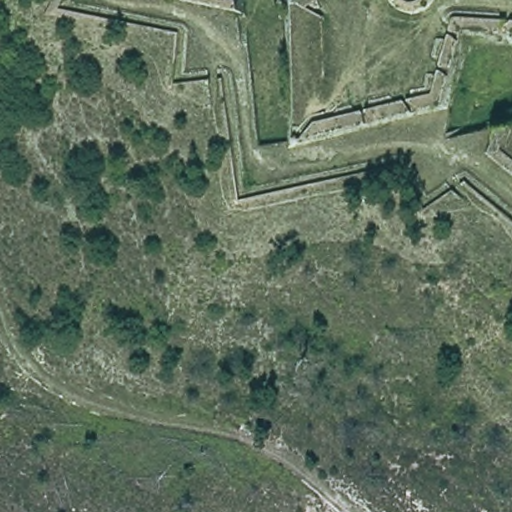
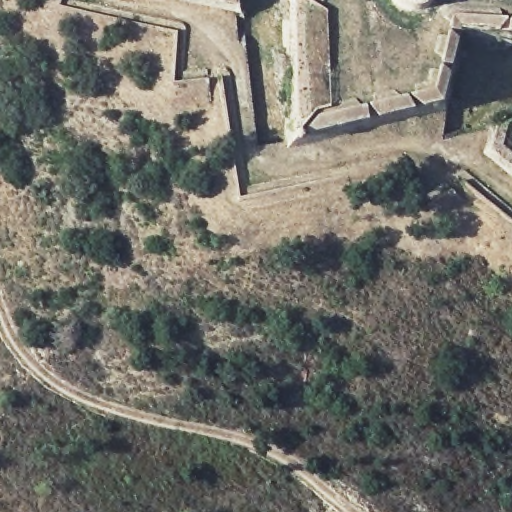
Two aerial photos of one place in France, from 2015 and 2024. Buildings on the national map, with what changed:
unchanged [(229,0),(230,14),(161,0),(229,0)]
unchanged [(462,28),(435,102),(301,130),(289,2),(294,0),(512,0),(512,31),(462,28)]
unchanged [(487,159),(491,126),(512,124),(512,177),(487,159)]

